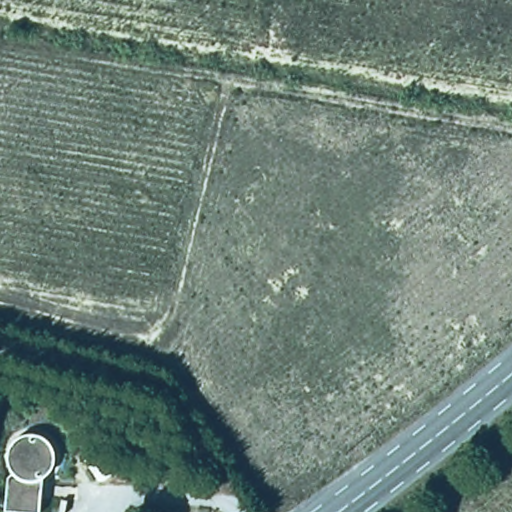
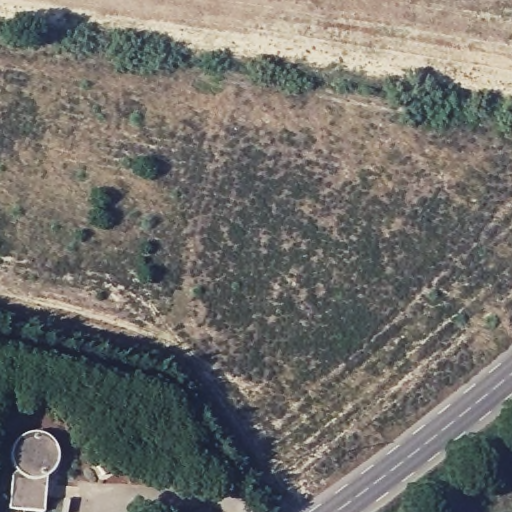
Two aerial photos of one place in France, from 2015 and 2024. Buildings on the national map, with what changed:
unchanged [(43,510),(7,507),(10,473),(16,469),(14,467),(11,461),(10,454),(11,447),(13,444),(15,440),(18,437),(21,434),(24,433),(28,431),(31,431),(34,431),(41,432),(44,433),(48,435),(50,437),(52,440),(54,443),(56,449),(57,454),(56,460),(55,464),(53,466),(51,470),(50,471),(48,472),(45,474),(43,510)]

